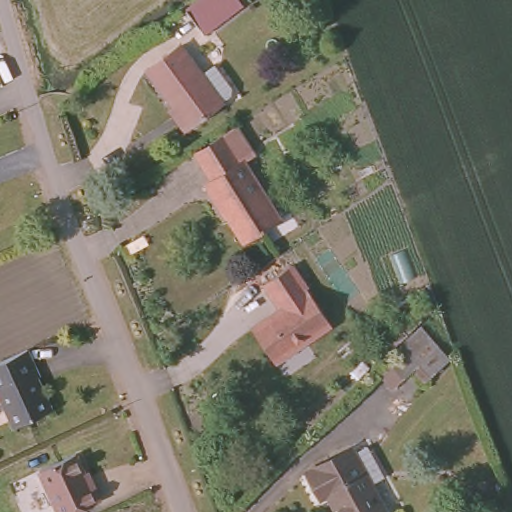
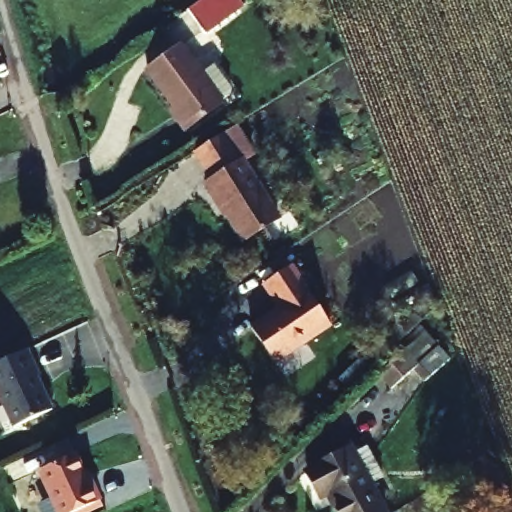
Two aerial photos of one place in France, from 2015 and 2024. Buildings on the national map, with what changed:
unchanged [(205,0),(244,0),(218,19),(205,0)]
unchanged [(193,76),(207,67),(223,92),(221,99),(211,105),(176,128),(140,69),(173,46),(193,76)]
unchanged [(274,222),(239,244),(220,213),(218,214),(201,187),(206,184),(189,155),(228,130),(246,157),(236,164),(274,222)]
unchanged [(325,321),(269,358),(247,326),(275,305),(259,283),(288,265),(325,321)]
unchanged [(414,370),(393,387),(379,373),(401,353),(385,336),(412,312),(451,357),(424,382),(414,370)]
unchanged [(38,368),(42,380),(4,397),(0,388),(0,351),(31,337),(44,365),(38,368)]
unchanged [(60,405),(15,425),(4,397),(42,380),(48,377),(60,405)]
unchanged [(323,496),(316,500),(304,475),(347,452),(376,512),(331,512),(323,496)]
unchanged [(67,455),(82,486),(88,483),(96,500),(73,512),(53,512),(33,472),(67,455)]

